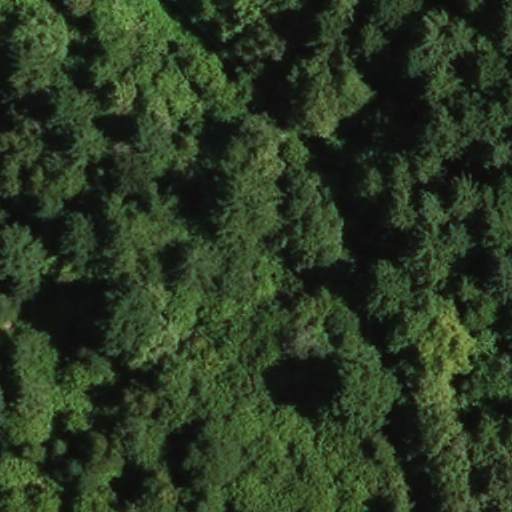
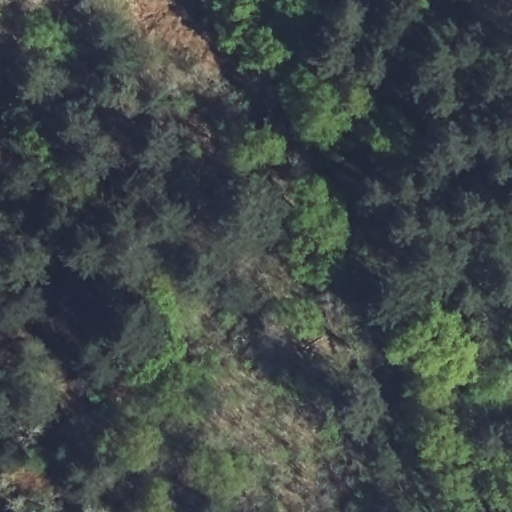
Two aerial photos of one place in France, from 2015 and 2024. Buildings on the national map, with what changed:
unchanged [(230,119),(237,153),(220,155),(215,121),(230,119)]

